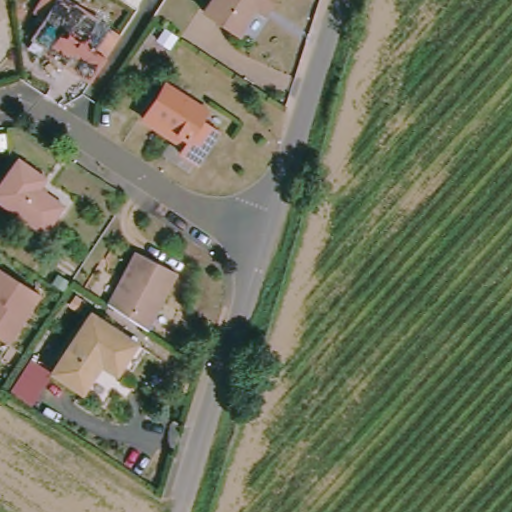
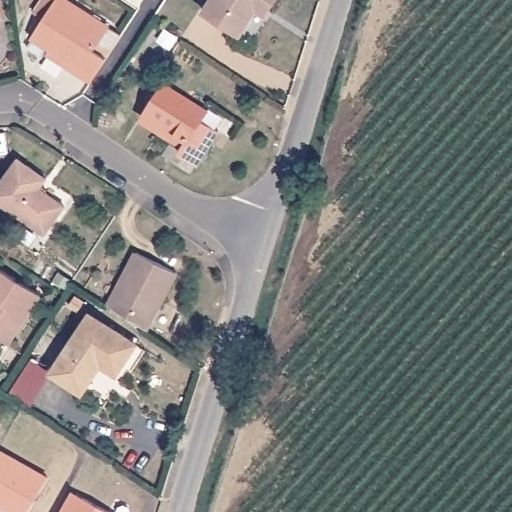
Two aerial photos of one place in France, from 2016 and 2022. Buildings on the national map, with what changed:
unchanged [(94,85),(65,66),(66,62),(33,39),(44,22),(36,14),(47,0),(56,0),(58,1),(59,0),(66,0),(124,40),(94,85)]
unchanged [(276,12),(266,6),(247,37),(210,14),(219,0),(283,0),(276,12)]
unchanged [(183,155),(191,142),(184,136),(179,144),(148,122),(173,87),(211,113),(207,122),(226,134),(203,167),(183,155)]
unchanged [(44,192),(68,211),(47,237),(0,203),(0,193),(23,163),(50,182),(44,192)]
unchanged [(117,307),(129,285),(125,282),(141,256),(181,278),(154,327),(117,307)]
unchanged [(0,341),(0,269),(43,297),(11,348),(0,341)]
unchanged [(144,346),(123,378),(107,367),(90,395),(59,376),(98,317),(144,346)]
new [(26,512),(12,512),(0,505),(0,450),(46,477),(26,512)]
new [(110,512),(58,512),(70,490),(110,512)]

